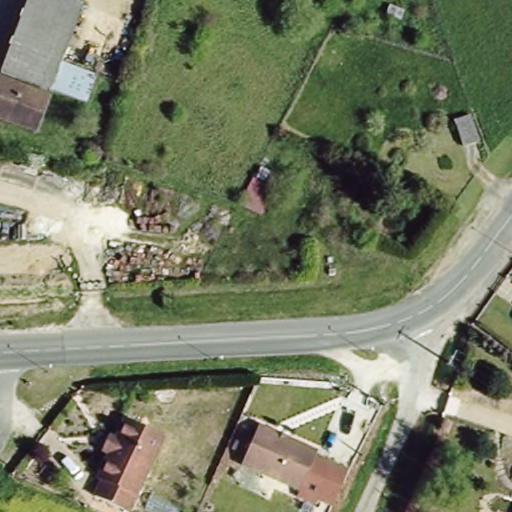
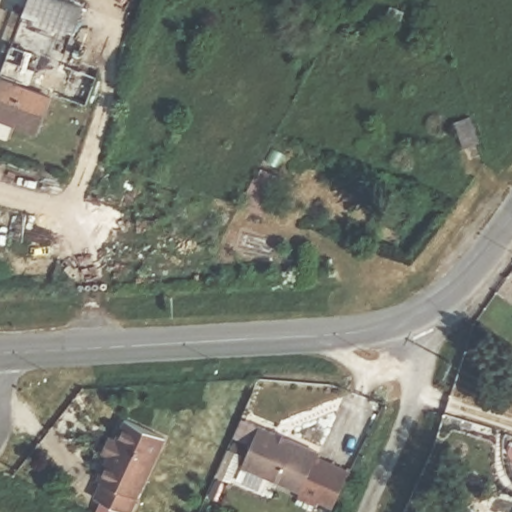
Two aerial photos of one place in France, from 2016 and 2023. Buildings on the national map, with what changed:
unchanged [(59,60),(49,86),(48,89),(0,70),(0,69),(27,0),(71,0),(82,4),(59,60)]
unchanged [(95,74),(87,96),(85,100),(49,86),(59,60),(95,74)]
unchanged [(45,97),(32,129),(0,116),(0,79),(45,97)]
unchanged [(478,136),(462,143),(453,122),(470,115),(478,136)]
unchanged [(162,438),(125,512),(85,492),(121,418),(162,438)]
unchanged [(318,447),(301,490),(242,465),(258,423),(318,447)]

